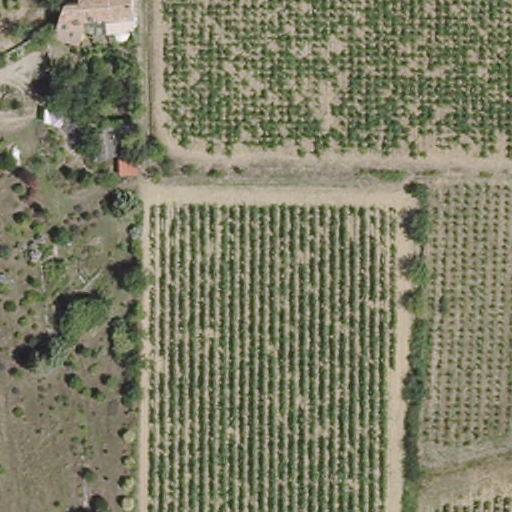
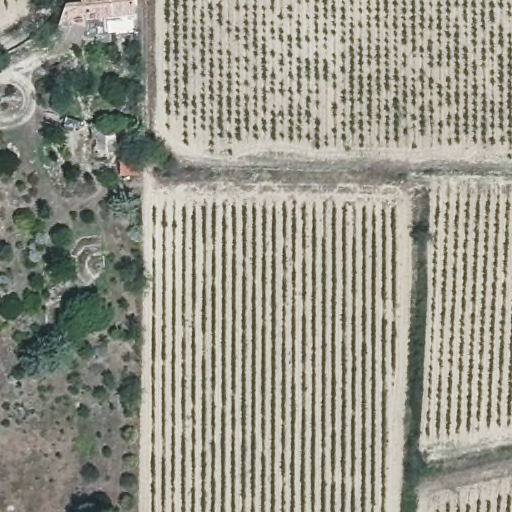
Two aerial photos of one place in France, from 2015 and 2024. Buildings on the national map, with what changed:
unchanged [(62,33),(57,29),(67,15),(77,2),(87,2),(92,1),(92,0),(136,0),(137,20),(127,20),(95,23),(90,31),(78,46),(62,33)]
unchanged [(119,124),(124,158),(92,161),(92,123),(119,124)]

